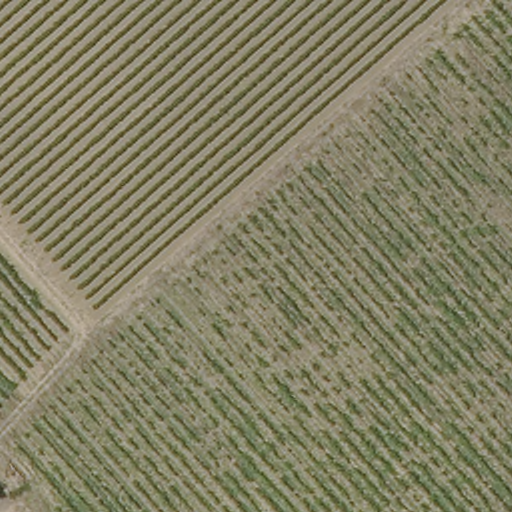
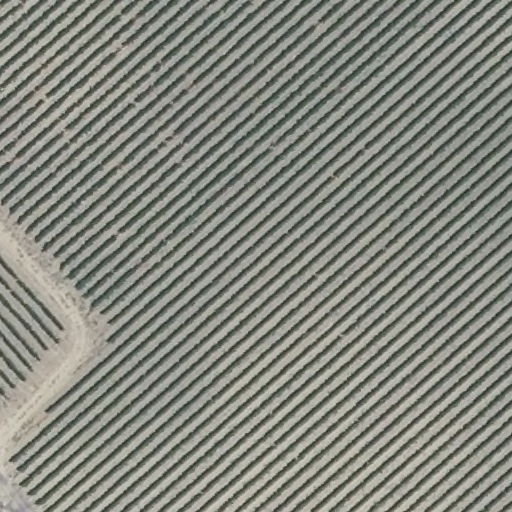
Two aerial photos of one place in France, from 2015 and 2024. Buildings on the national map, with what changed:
unchanged [(0,462),(11,452),(30,477),(14,490),(0,469),(0,462)]

